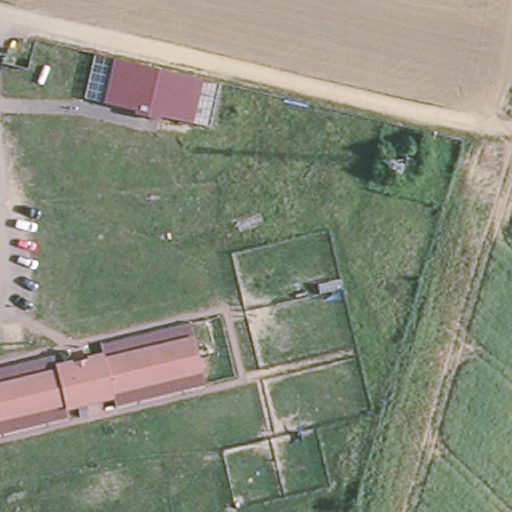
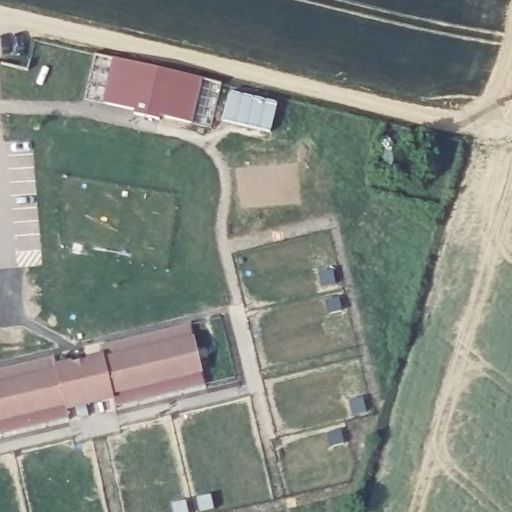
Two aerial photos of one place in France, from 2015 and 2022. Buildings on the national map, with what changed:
unchanged [(93,57),(218,84),(211,127),(162,117),(161,120),(137,116),(138,111),(83,96),(93,57)]
new [(279,100),(273,133),(223,122),(229,90),(279,100)]
unchanged [(54,368),(103,356),(101,344),(188,323),(194,339),(202,370),(205,386),(114,409),(113,397),(65,410),(68,421),(0,435),(0,370),(51,355),(54,368)]

